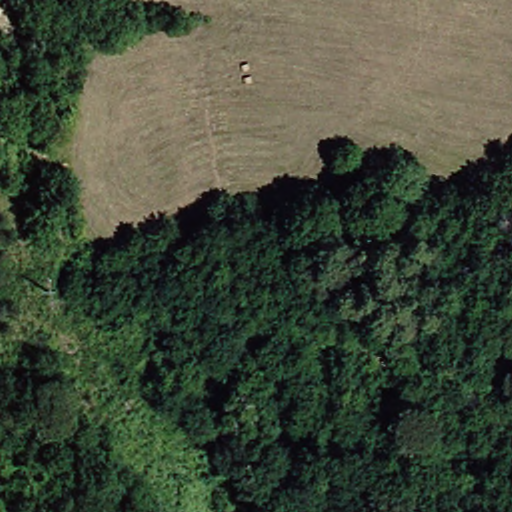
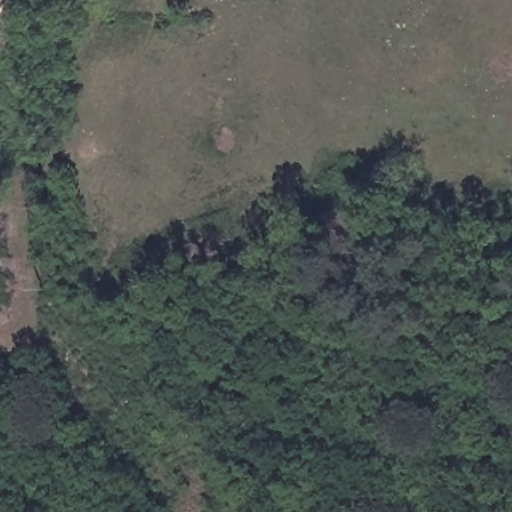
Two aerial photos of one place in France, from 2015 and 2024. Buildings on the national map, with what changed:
[]

